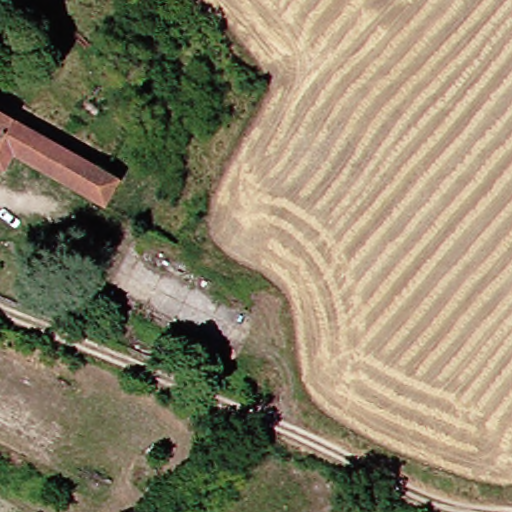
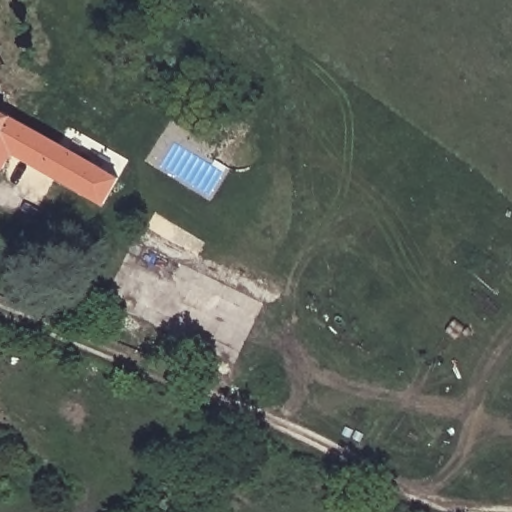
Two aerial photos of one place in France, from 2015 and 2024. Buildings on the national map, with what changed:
unchanged [(95,205),(11,157),(0,168),(0,114),(71,156),(108,181),(95,205)]

